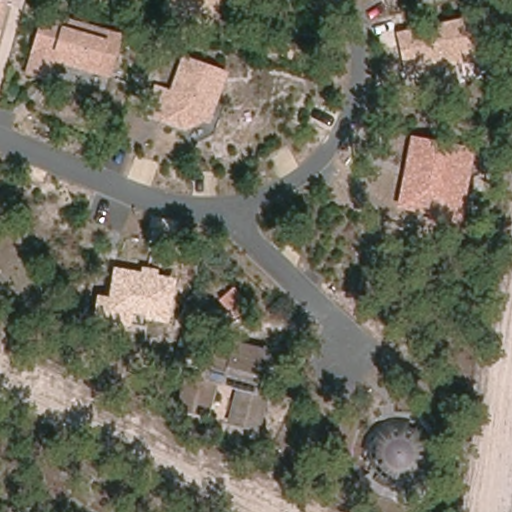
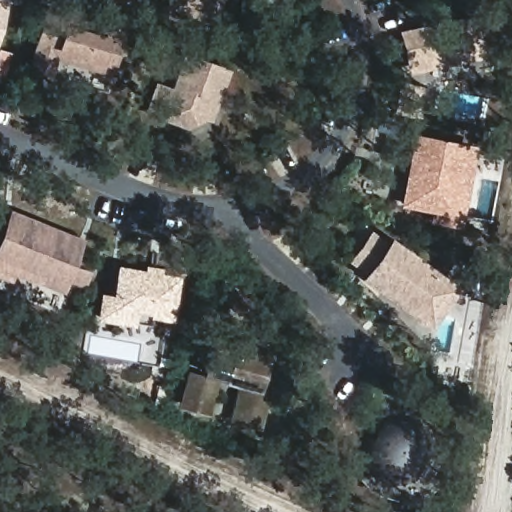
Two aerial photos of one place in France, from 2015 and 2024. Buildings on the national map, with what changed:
unchanged [(5,0),(0,19),(0,0),(5,0)]
unchanged [(160,9),(163,0),(218,0),(208,29),(160,9)]
unchanged [(107,79),(52,61),(46,81),(22,73),(39,9),(119,33),(107,79)]
unchanged [(403,75),(394,30),(478,13),(486,57),(403,75)]
unchanged [(197,118),(195,121),(180,128),(157,119),(157,118),(144,113),(152,86),(167,91),(179,56),(222,73),(211,100),(205,121),(197,118)]
unchanged [(458,230),(425,224),(427,214),(395,208),(411,134),(475,147),(458,230)]
new [(72,264),(88,269),(82,286),(66,280),(62,290),(40,282),(41,276),(0,260),(0,222),(6,207),(82,238),(72,264)]
new [(428,327),(357,275),(360,273),(346,262),(370,230),(382,240),(386,235),(457,287),(428,327)]
unchanged [(166,323),(132,318),(130,325),(89,318),(92,292),(107,294),(110,265),(137,270),(138,264),(156,268),(155,273),(172,275),(166,323)]
unchanged [(256,381),(267,390),(255,433),(225,422),(238,389),(217,383),(204,419),(176,407),(192,361),(204,363),(211,332),(266,349),(256,381)]
unchanged [(423,439),(425,443),(424,452),(423,461),(419,469),(414,474),(408,479),(400,481),(390,479),(382,478),(375,474),(370,467),(367,444),(370,437),(372,431),(377,428),(382,424),(385,422),(392,422),(397,421),(400,421),(405,422),(410,424),(415,427),(419,430),(423,439)]

